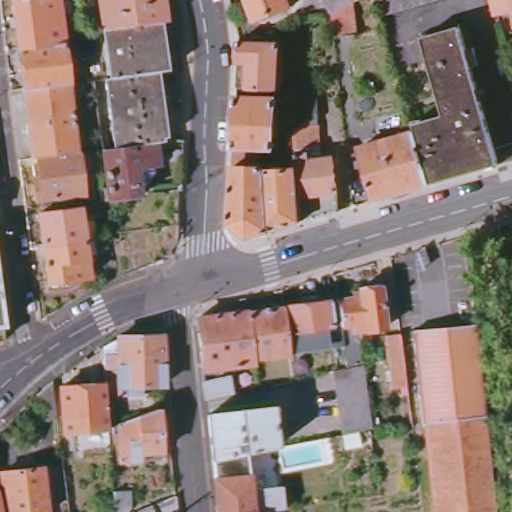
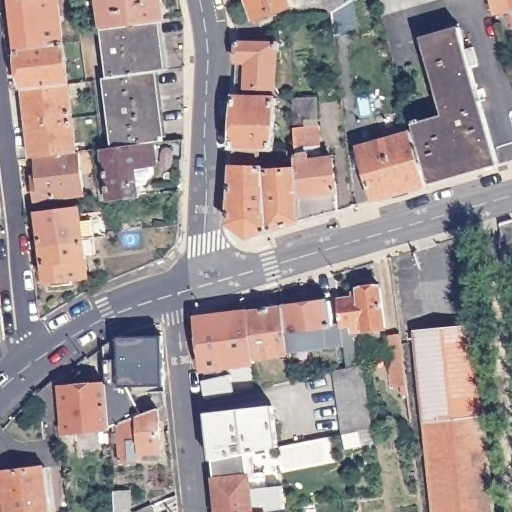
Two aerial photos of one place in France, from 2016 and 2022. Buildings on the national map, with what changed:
unchanged [(8,0),(53,0),(58,44),(14,50),(8,0)]
unchanged [(164,21),(159,23),(105,30),(105,29),(101,0),(161,0),(164,20),(164,21)]
unchanged [(290,0),(292,6),(259,19),(251,0),(290,0)]
unchanged [(328,0),(355,0),(357,3),(354,5),(357,39),(335,40),(332,18),(324,3),(328,0)]
unchanged [(442,0),(380,16),(376,0),(442,0)]
unchanged [(512,0),(512,12),(494,14),(490,0),(512,0)]
unchanged [(105,29),(105,30),(159,23),(165,70),(157,71),(110,78),(105,29)]
unchanged [(419,135),(417,136),(417,131),(446,121),(425,41),(462,31),(470,56),(476,54),(481,72),(475,74),(501,169),(435,189),(419,135)]
unchanged [(19,91),(14,50),(58,44),(62,85),(19,91)]
unchanged [(240,44),(281,45),(277,94),(237,91),(240,44)]
unchanged [(107,79),(110,78),(157,71),(164,141),(115,148),(106,79),(107,79)]
unchanged [(35,159),(27,160),(19,91),(62,85),(71,154),(35,159)]
unchanged [(295,175),(295,168),(280,166),(280,156),(294,156),(292,101),(315,101),(319,158),(331,156),(338,216),(302,226),(297,175),(295,175)]
unchanged [(261,156),(234,154),(237,103),(276,105),(272,156),(261,156)]
unchanged [(419,135),(435,189),(379,205),(364,152),(417,136),(419,135)]
unchanged [(102,202),(100,191),(109,190),(104,150),(115,148),(164,141),(184,139),(183,159),(157,161),(156,164),(152,165),(152,175),(147,186),(138,186),(139,197),(139,199),(111,203),(110,201),(102,202)]
unchanged [(71,154),(74,153),(79,195),(32,200),(30,183),(37,182),(35,159),(71,154)]
unchanged [(249,242),(230,228),(234,154),(261,156),(262,161),(255,161),(255,172),(262,173),(264,173),(265,176),(269,236),(249,242)]
unchanged [(297,175),(302,226),(269,236),(265,176),(295,175),(297,175)]
unchanged [(38,244),(35,214),(75,208),(79,239),(38,244)]
unchanged [(503,263),(500,238),(504,238),(502,225),(512,222),(512,262),(503,263)]
unchanged [(79,239),(84,276),(42,282),(38,244),(79,239)]
unchanged [(338,301),(360,298),(359,289),(382,286),(386,328),(354,332),(352,325),(341,326),(338,301)]
unchanged [(284,308),(332,301),(334,326),(300,330),(304,345),(289,347),(284,308)]
unchanged [(0,341),(0,308),(4,340),(0,341)]
unchanged [(247,312),(284,308),(289,347),(290,354),(255,358),(247,312)]
unchanged [(198,319),(247,312),(255,358),(257,363),(204,370),(198,319)]
unchanged [(494,512),(433,512),(421,405),(415,405),(412,387),(420,386),(420,380),(415,379),(414,373),(417,372),(415,342),(411,341),(410,332),(435,330),(475,326),(494,512)]
unchanged [(407,384),(392,386),(387,337),(402,335),(407,384)]
unchanged [(119,337),(140,337),(161,337),(164,366),(104,368),(102,348),(119,337)]
unchanged [(346,367),(320,373),(315,357),(342,351),(346,367)]
unchanged [(347,369),(363,365),(373,429),(342,435),(332,372),(347,369)]
unchanged [(120,398),(107,400),(105,385),(104,368),(164,366),(165,386),(144,387),(144,396),(120,398)]
unchanged [(52,382),(57,420),(41,422),(38,396),(52,382)]
unchanged [(205,387),(230,382),(234,398),(208,404),(207,404),(202,388),(205,387)]
unchanged [(107,400),(110,426),(110,430),(64,434),(60,388),(105,385),(107,400)]
unchanged [(167,406),(168,422),(158,422),(160,454),(142,455),(142,462),(120,463),(119,433),(114,434),(112,426),(167,406)]
unchanged [(247,459),(214,466),(210,419),(274,411),(279,452),(247,459)]
unchanged [(214,466),(247,459),(251,497),(280,492),(284,512),(218,512),(214,466)]
unchanged [(0,473),(46,468),(52,512),(4,512),(0,496),(0,473)]
unchanged [(0,496),(4,512),(0,512),(0,496)]
unchanged [(153,507),(177,496),(178,512),(177,512),(155,512),(153,507)]

